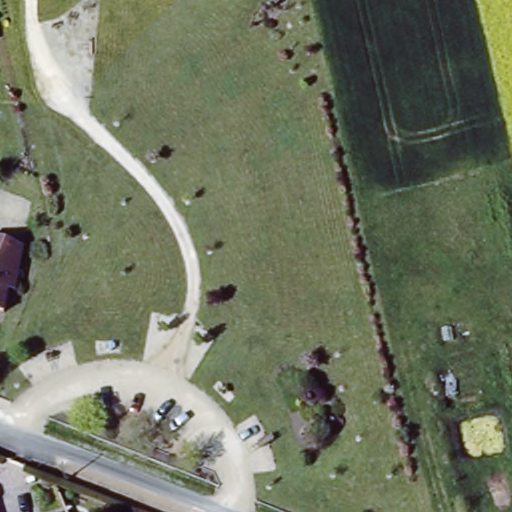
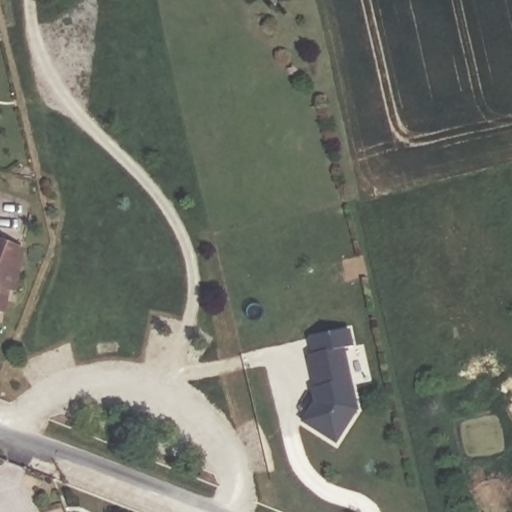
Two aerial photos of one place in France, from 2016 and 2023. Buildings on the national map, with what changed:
unchanged [(36,248),(5,317),(0,314),(0,233),(36,248)]
new [(301,421),(314,401),(311,388),(314,387),(308,355),(311,354),(308,338),(349,328),(354,349),(346,350),(358,410),(336,444),(301,421)]

